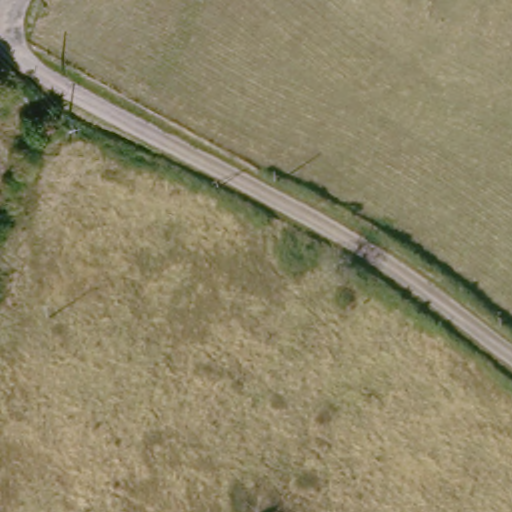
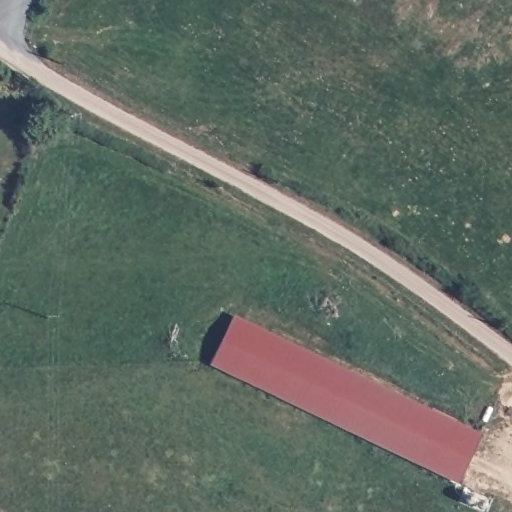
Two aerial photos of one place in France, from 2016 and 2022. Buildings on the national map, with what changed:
unchanged [(47,11),(35,20),(23,7),(33,0),(39,0),(47,11)]
new [(210,365),(233,315),(480,434),(457,482),(210,365)]

